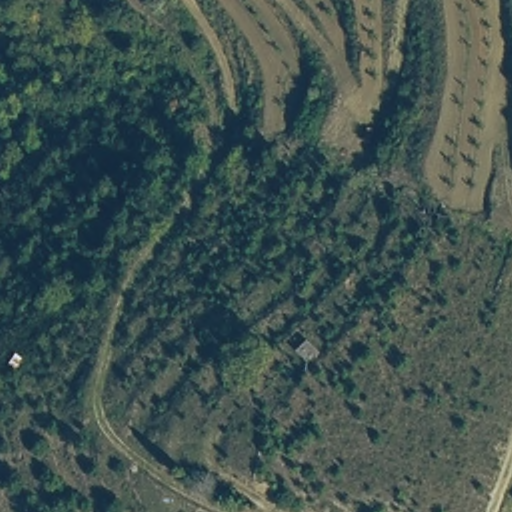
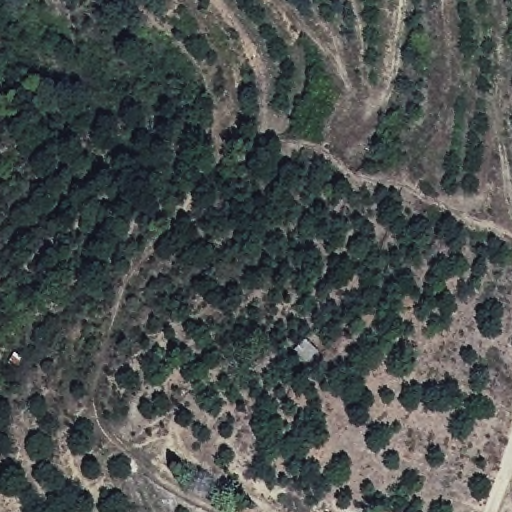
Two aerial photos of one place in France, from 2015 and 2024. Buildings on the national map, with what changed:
unchanged [(307,341),(323,356),(307,370),(292,354),(307,341)]

